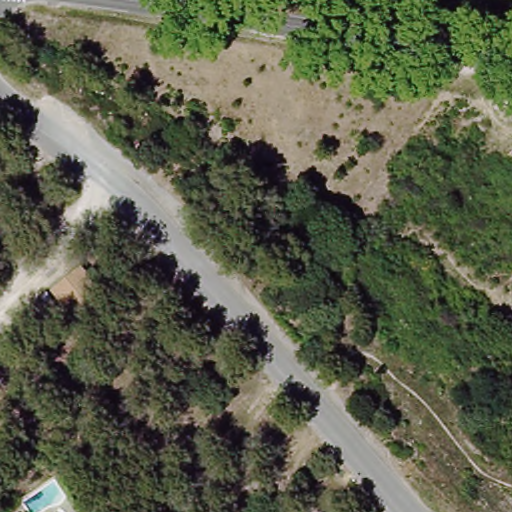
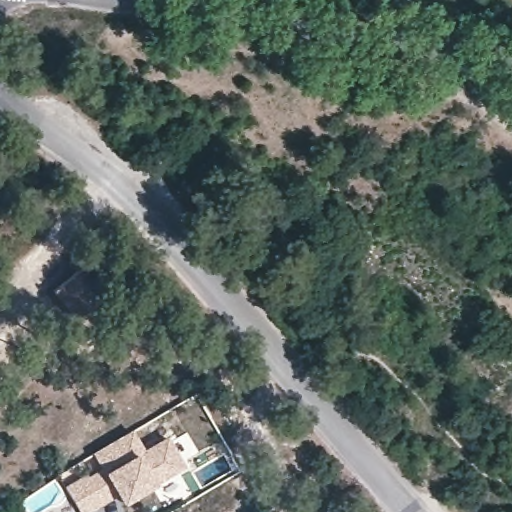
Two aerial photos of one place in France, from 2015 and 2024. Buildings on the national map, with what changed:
unchanged [(83,275),(105,298),(81,323),(59,301),(83,275)]
new [(132,428),(143,448),(165,435),(185,467),(120,505),(117,499),(98,469),(91,452),(132,428)]
new [(98,469),(117,499),(92,512),(79,512),(64,485),(98,469)]

